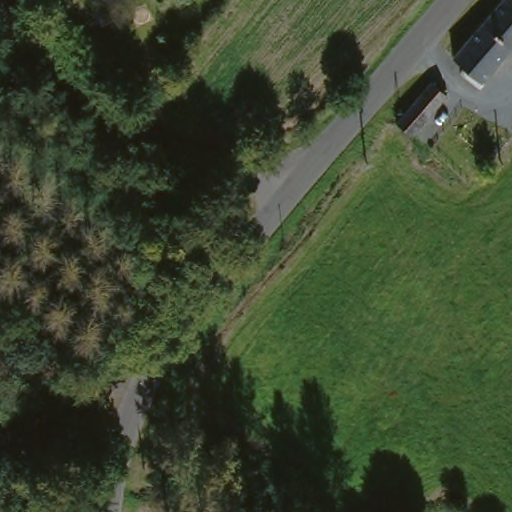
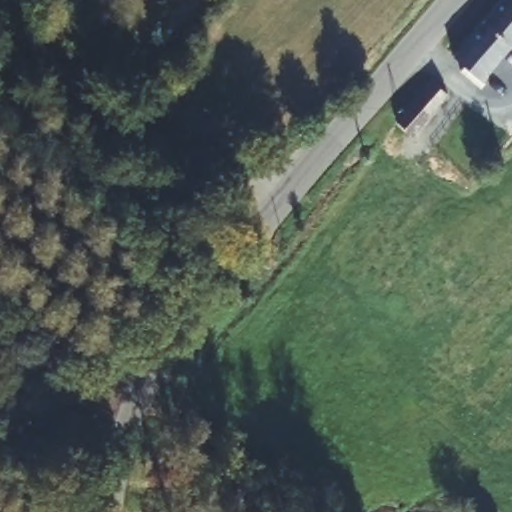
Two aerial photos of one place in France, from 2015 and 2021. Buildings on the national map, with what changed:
unchanged [(452,55),(505,0),(512,0),(512,47),(479,81),(452,55)]
unchanged [(450,97),(412,136),(395,121),(433,81),(450,97)]

